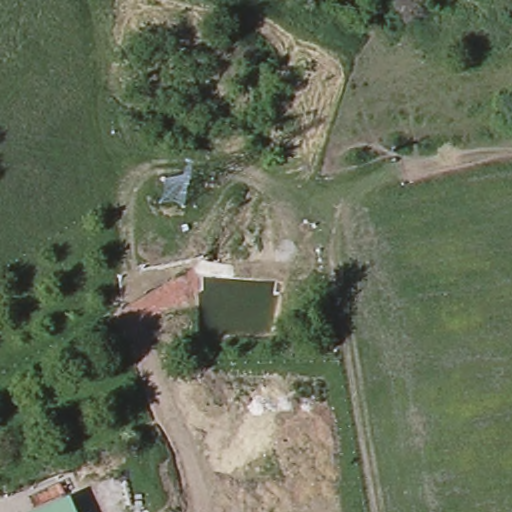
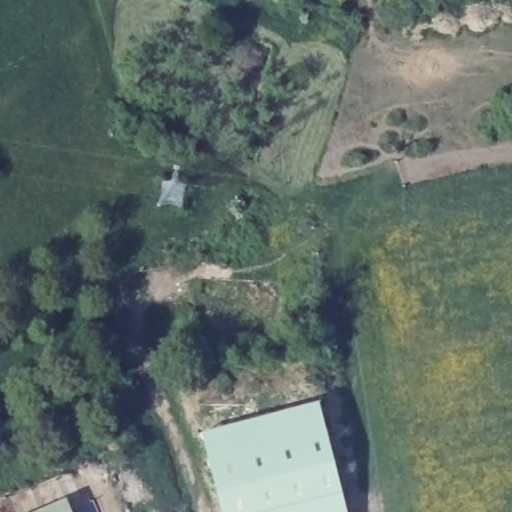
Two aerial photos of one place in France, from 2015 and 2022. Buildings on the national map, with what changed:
new [(350,512),(225,512),(206,434),(321,404),(350,512)]
unchanged [(71,512),(36,512),(65,498),(71,512)]

